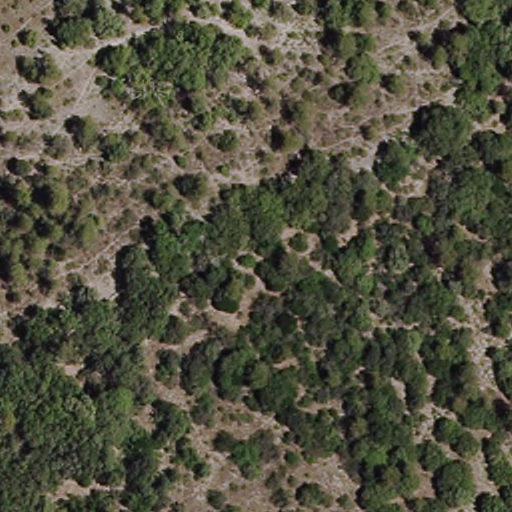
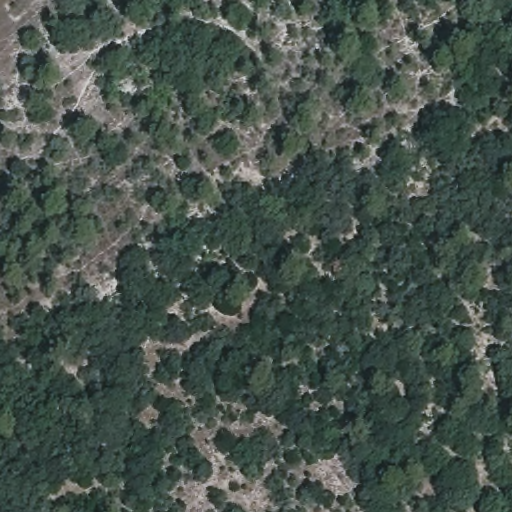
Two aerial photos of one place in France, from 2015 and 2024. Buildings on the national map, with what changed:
[]

